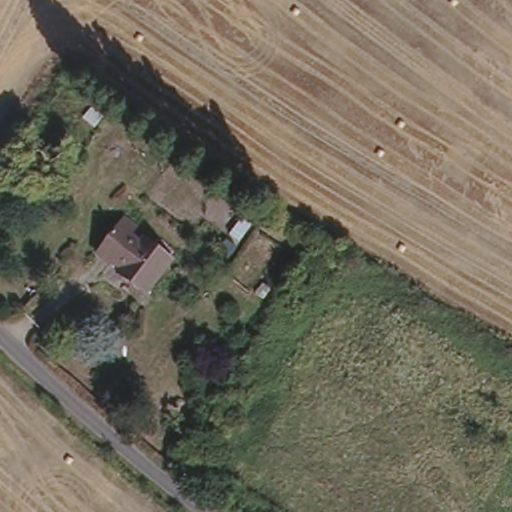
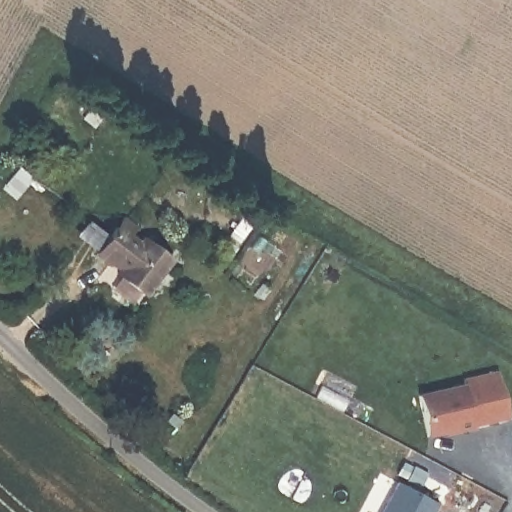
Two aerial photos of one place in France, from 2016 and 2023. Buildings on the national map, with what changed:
unchanged [(87,260),(115,217),(177,257),(142,295),(87,260)]
new [(422,392),(498,374),(508,424),(434,441),(422,392)]
new [(431,512),(378,512),(402,477),(437,503),(431,512)]

